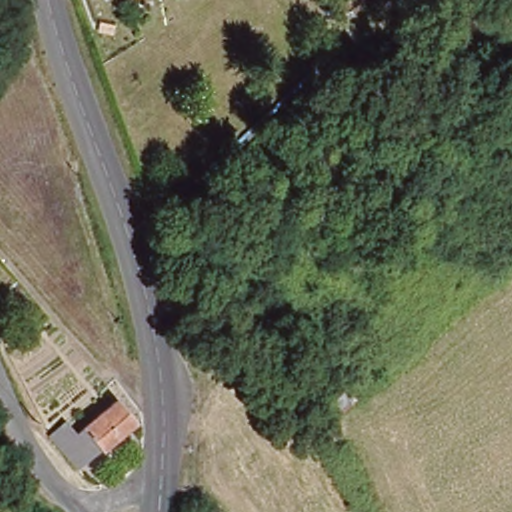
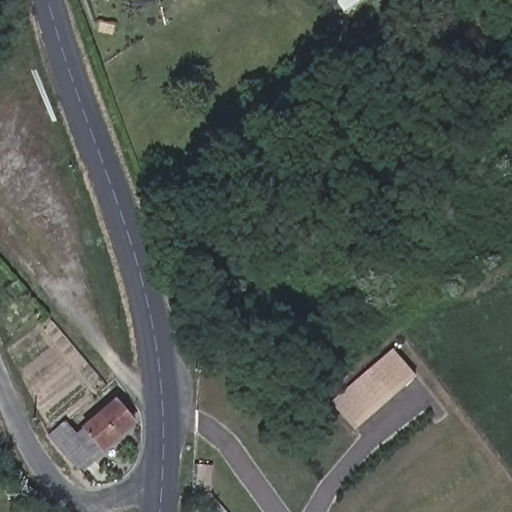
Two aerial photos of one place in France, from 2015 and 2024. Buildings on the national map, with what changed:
new [(393,349),(417,377),(355,431),(331,402),(393,349)]
unchanged [(122,431),(78,464),(61,442),(105,409),(122,431)]

